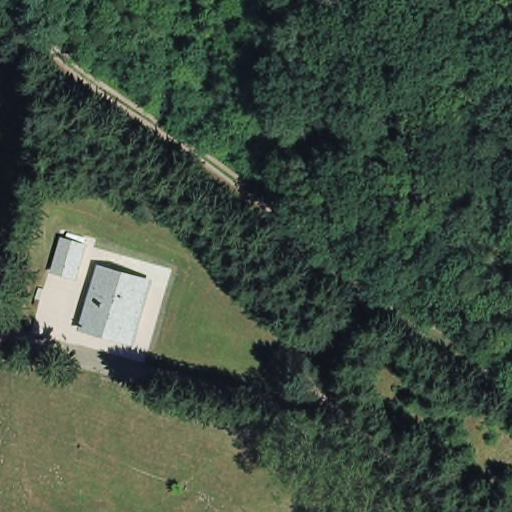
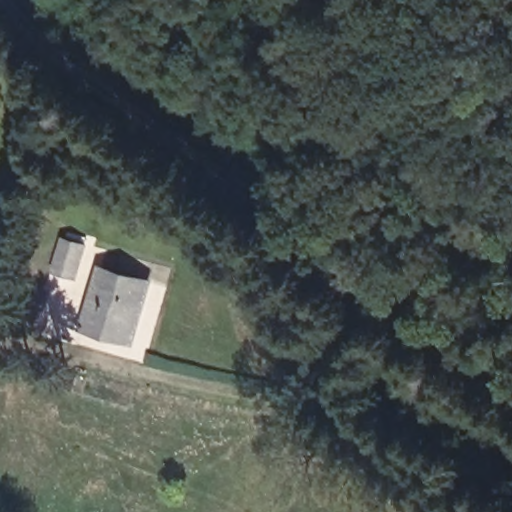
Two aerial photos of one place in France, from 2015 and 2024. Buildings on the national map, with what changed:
unchanged [(58,232),(79,238),(70,270),(50,264),(58,232)]
unchanged [(85,320),(87,309),(100,262),(148,276),(135,323),(132,333),(85,320)]

